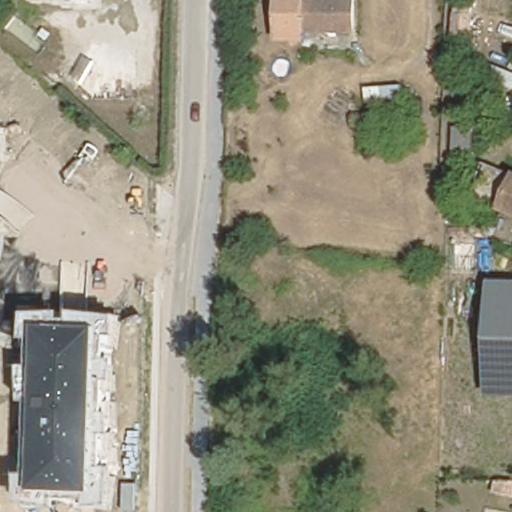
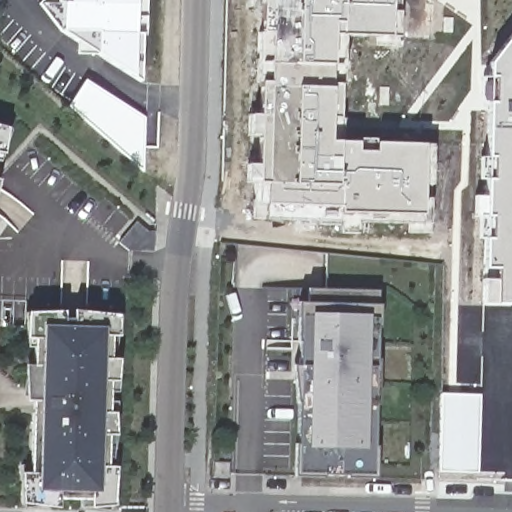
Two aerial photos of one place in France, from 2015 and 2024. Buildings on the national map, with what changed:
new [(141,80),(133,74),(96,53),(62,31),(62,2),(58,1),(58,0),(143,0),(141,32),(141,80)]
new [(359,233),(340,233),(340,223),(268,219),(269,204),(253,203),(253,183),(247,182),(247,163),(259,164),(261,136),(249,135),(252,115),(262,115),(263,82),(255,82),(256,32),(261,32),(262,0),(393,0),(392,36),(345,34),(345,84),(342,84),(340,118),(344,118),(343,141),(359,142),(359,138),(377,139),(376,142),(424,143),(434,144),(434,185),(424,185),(423,201),(433,199),(432,222),(421,224),(360,222),(359,233)]
demolished [(307,26),(307,0),(357,0),(357,27),(307,26)]
new [(484,303),(484,269),(486,241),(479,240),(480,216),(473,216),(474,195),(487,195),(487,178),(480,177),(481,156),(486,156),(489,102),(483,101),(483,76),(490,76),(489,63),(512,34),(512,304),(495,304),(484,303)]
new [(87,79),(145,117),(144,171),(69,105),(87,79)]
unchanged [(0,167),(0,126),(8,127),(0,167)]
demolished [(501,204),(502,203),(470,190),(483,158),(512,170),(512,209),(506,207),(501,204)]
demolished [(472,244),(476,269),(457,272),(452,247),(472,244)]
demolished [(490,281),(512,282),(512,397),(488,397),(490,281)]
new [(294,477),(299,302),(309,302),(310,289),(381,291),(377,478),(294,477)]
unchanged [(114,505),(62,507),(21,501),(28,314),(69,310),(120,316),(114,505)]
new [(477,472),(439,471),(442,396),(480,397),(477,472)]

